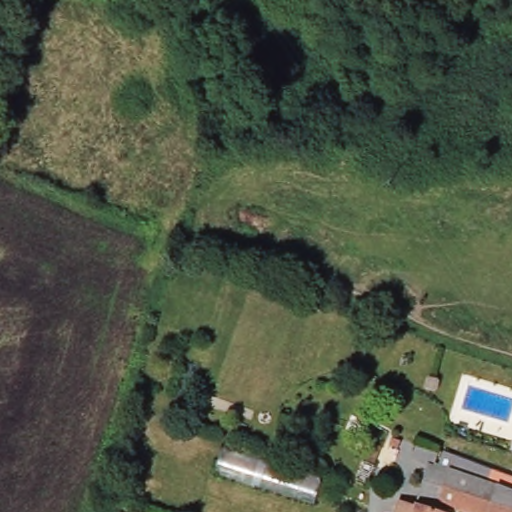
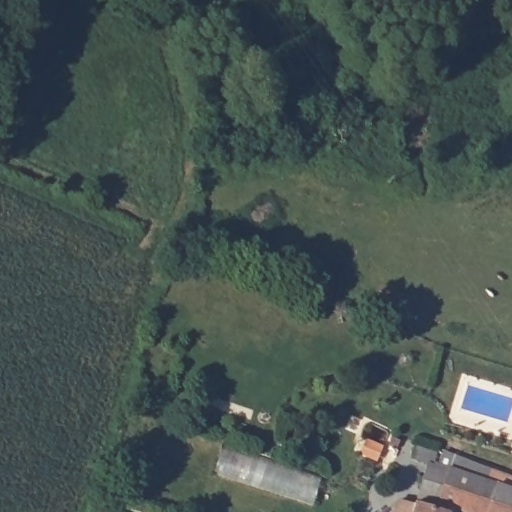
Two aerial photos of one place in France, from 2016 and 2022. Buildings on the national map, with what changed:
unchanged [(407,440),(402,451),(392,447),(397,436),(407,440)]
unchanged [(423,442),(443,449),(438,464),(445,466),(449,453),(512,475),(512,486),(511,489),(512,489),(512,512),(469,512),(422,495),(432,464),(417,459),(423,442)]
unchanged [(382,464),(373,487),(357,481),(365,458),(382,464)]
unchanged [(444,512),(400,512),(404,499),(444,512)]

